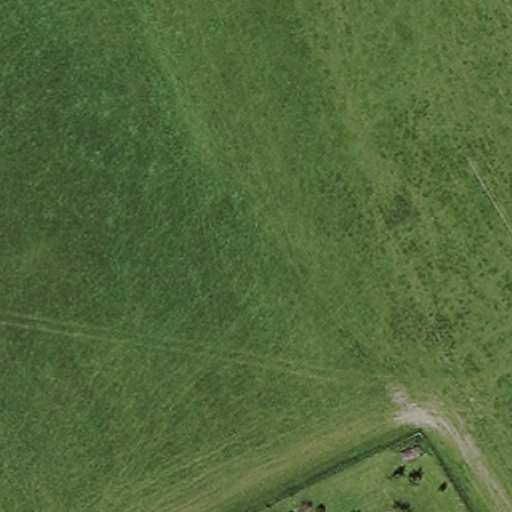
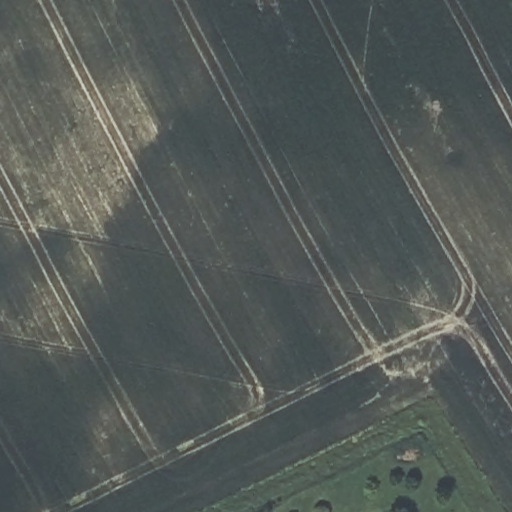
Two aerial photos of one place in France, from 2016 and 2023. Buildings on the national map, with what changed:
[]

